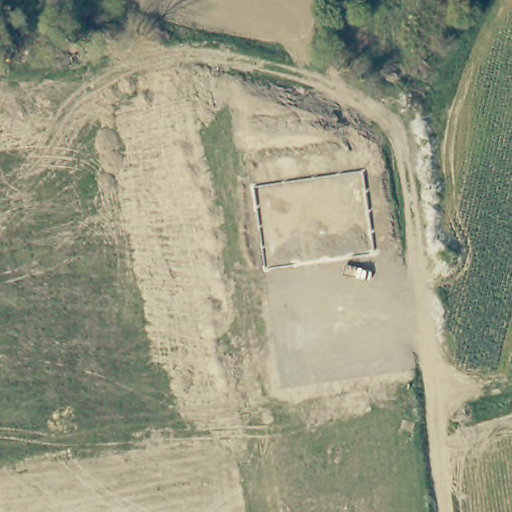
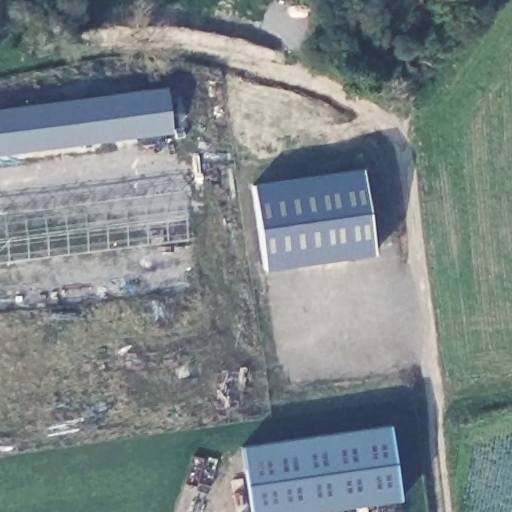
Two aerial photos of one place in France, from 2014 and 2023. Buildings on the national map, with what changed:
new [(0,154),(0,108),(167,86),(172,132),(0,154)]
new [(361,168),(373,255),(262,271),(252,183),(361,168)]
new [(388,425),(399,501),(317,512),(249,512),(242,446),(388,425)]

